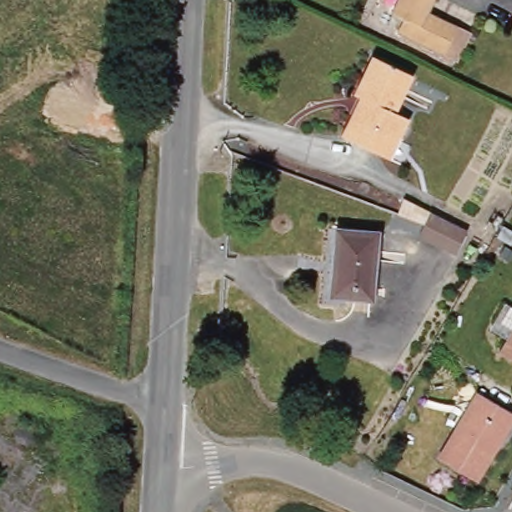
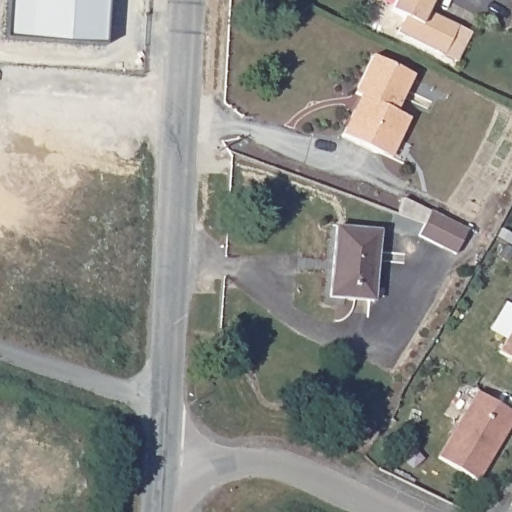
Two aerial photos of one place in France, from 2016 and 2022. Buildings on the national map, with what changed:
new [(103,43),(5,38),(7,0),(105,0),(103,43)]
unchanged [(431,13),(459,28),(445,56),(399,33),(405,18),(392,10),(397,0),(437,0),(431,13)]
unchanged [(387,156),(347,137),(365,96),(360,93),(378,57),(418,76),(400,113),(414,120),(404,141),(395,161),(387,156)]
unchanged [(409,200),(474,229),(473,231),(471,236),(464,253),(425,236),(431,224),(404,215),(409,200)]
unchanged [(376,301),(332,297),(340,226),(384,231),(376,301)]
unchanged [(512,339),(512,357),(504,352),(512,339)]
unchanged [(512,412),(512,421),(477,480),(438,457),(477,391),(512,412)]

